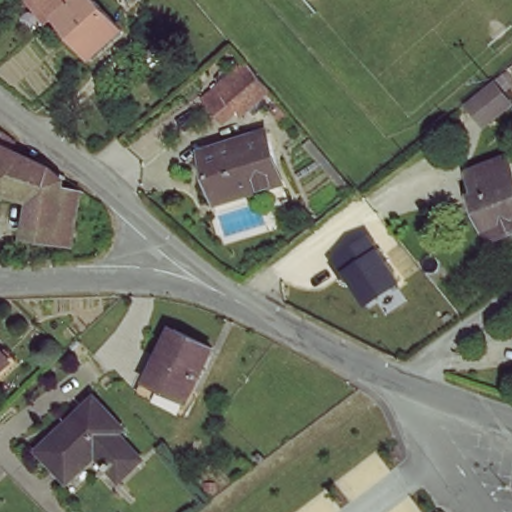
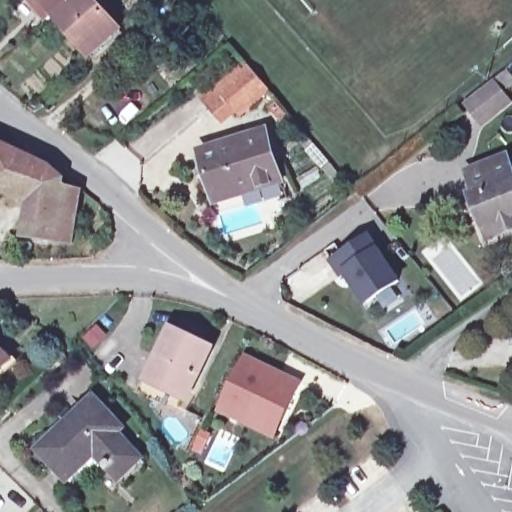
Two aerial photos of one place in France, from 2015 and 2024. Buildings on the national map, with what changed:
unchanged [(87,60),(48,14),(44,17),(29,0),(91,0),(118,35),(87,60)]
unchanged [(239,66),(244,72),(259,89),(226,114),(215,102),(211,98),(206,93),(239,65),(239,66)]
unchanged [(493,82),(511,101),(483,125),(464,103),(493,82)]
unchanged [(73,248),(28,238),(34,201),(0,187),(0,125),(17,138),(11,148),(59,169),(85,191),(73,248)]
unchanged [(269,130),(285,176),(221,195),(206,148),(269,130)]
unchanged [(510,150),(512,155),(512,222),(509,223),(504,216),(491,221),(479,194),(481,192),(475,166),(510,150)]
unchanged [(368,235),(398,279),(366,300),(346,270),(341,273),(331,259),(368,235)]
unchanged [(213,349),(190,401),(148,378),(173,327),(213,349)]
unchanged [(0,373),(0,347),(13,362),(0,373)]
new [(247,423),(221,410),(246,358),(300,384),(281,422),(275,437),(247,423)]
unchanged [(123,421),(118,428),(142,451),(123,468),(101,448),(73,475),(43,446),(96,394),(123,421)]

